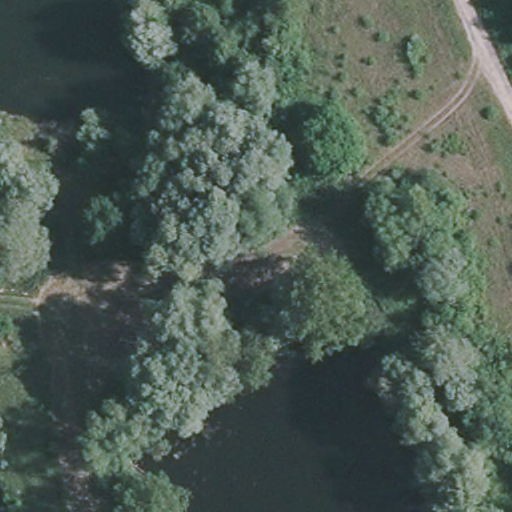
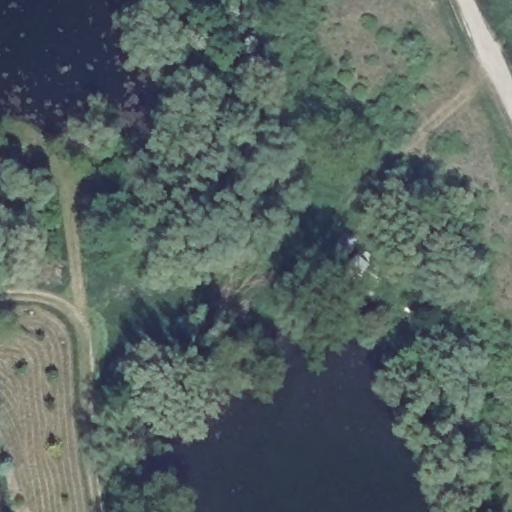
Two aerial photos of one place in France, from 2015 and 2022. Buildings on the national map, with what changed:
unchanged [(190,150),(208,125),(220,138),(200,160),(190,150)]

